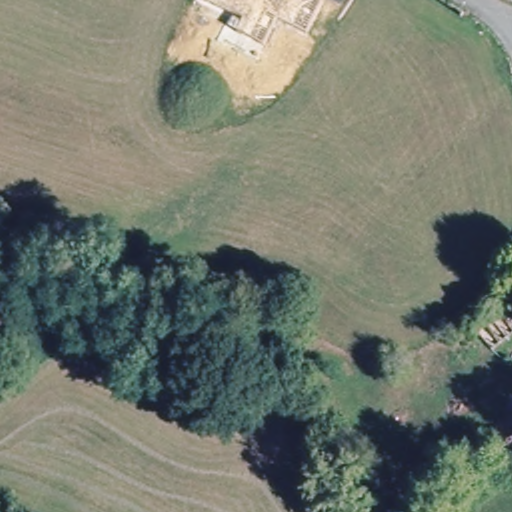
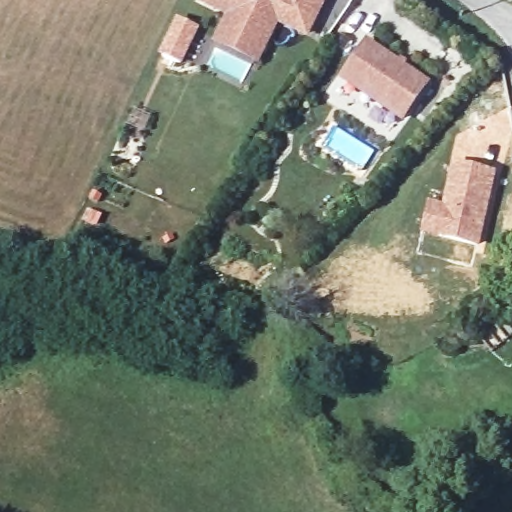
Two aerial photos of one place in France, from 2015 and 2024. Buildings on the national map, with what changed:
new [(225,17),(195,2),(196,0),(326,0),(308,40),(278,25),(260,67),(212,44),(225,17)]
new [(339,79),(367,39),(430,82),(402,123),(339,79)]
new [(443,209),(453,165),(492,174),(476,244),(437,235),(422,233),(428,205),(443,209)]

